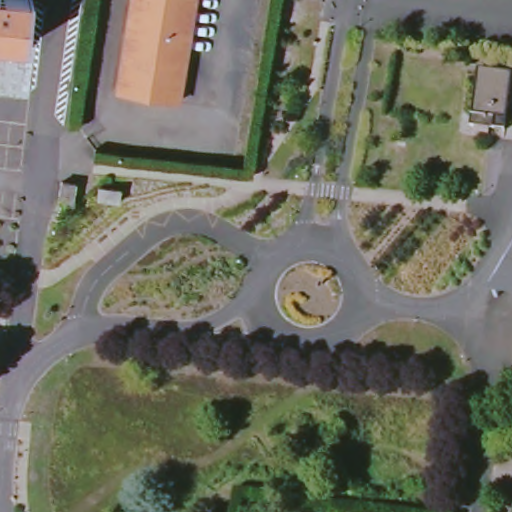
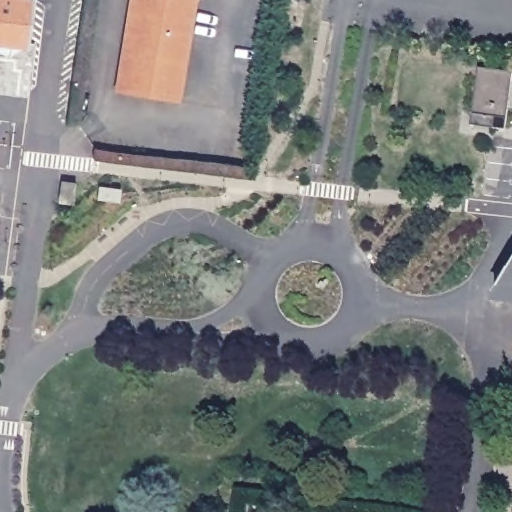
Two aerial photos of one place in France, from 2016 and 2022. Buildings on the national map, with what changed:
unchanged [(25,44),(0,41),(0,0),(30,0),(25,44)]
unchanged [(122,87),(137,0),(200,0),(183,96),(122,87)]
unchanged [(478,68),(512,73),(512,77),(504,128),(469,123),(478,68)]
unchanged [(62,176),(76,178),(73,198),(59,196),(62,176)]
unchanged [(121,185),(119,197),(97,194),(100,181),(121,185)]

